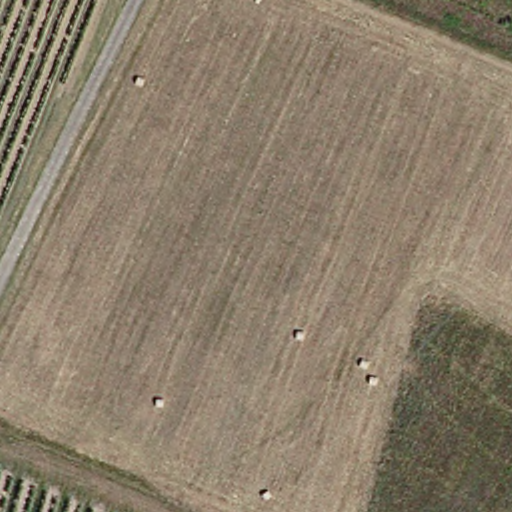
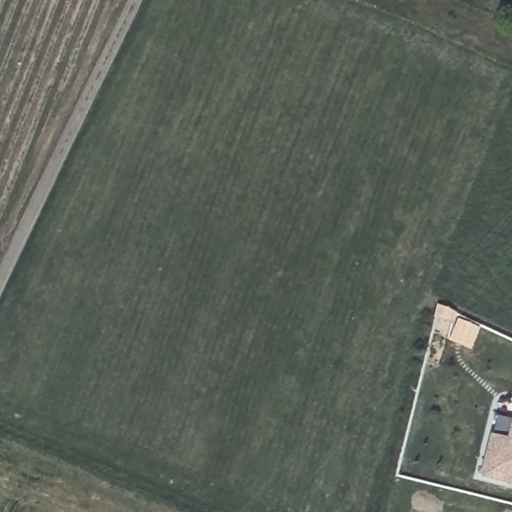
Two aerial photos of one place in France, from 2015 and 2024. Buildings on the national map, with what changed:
new [(485,472),(490,451),(495,432),(510,436),(512,428),(512,479),(485,472)]

